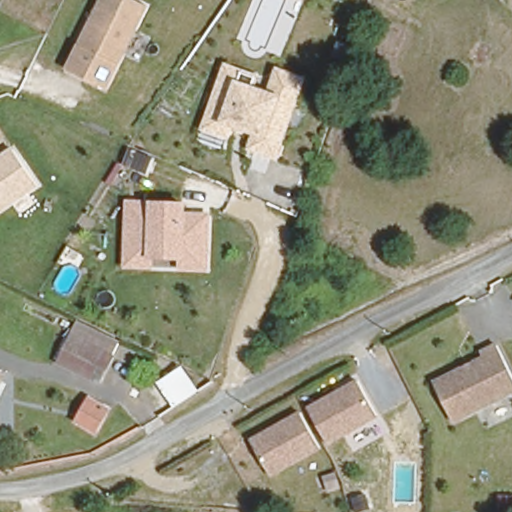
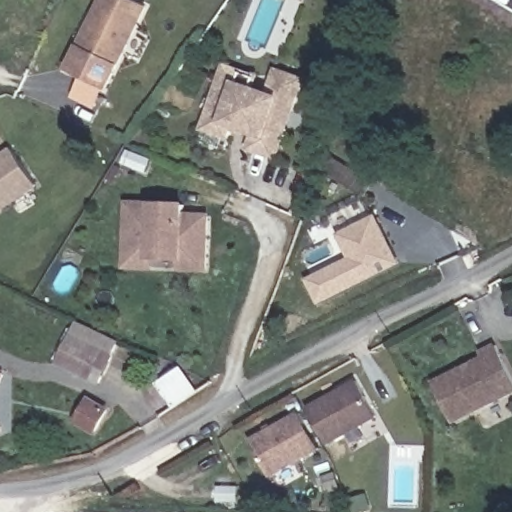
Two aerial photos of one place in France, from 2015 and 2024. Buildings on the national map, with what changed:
unchanged [(109,90),(64,69),(97,0),(134,0),(147,6),(109,90)]
unchanged [(260,74),(255,86),(265,89),(273,65),(304,76),(275,160),(243,150),(247,136),(230,130),(225,142),(196,130),(221,62),(260,74)]
unchanged [(11,146),(38,187),(0,212),(0,153),(11,146)]
unchanged [(122,199),(152,199),(151,200),(188,201),(188,213),(211,215),(210,274),(176,272),(175,259),(150,258),(152,268),(119,267),(122,199)]
new [(342,237),(378,220),(390,242),(393,249),(401,266),(321,304),(312,286),(315,280),(354,261),(342,237)]
unchanged [(72,308),(118,331),(92,384),(46,361),(72,308)]
unchanged [(512,399),(509,400),(499,405),(488,410),(478,415),(468,420),(458,425),(452,428),(450,424),(445,414),(440,403),(435,393),(433,390),(462,376),(467,378),(472,376),(473,371),(485,365),(482,360),(498,352),(512,381),(512,399)]
unchanged [(200,398),(172,416),(153,388),(180,368),(200,398)]
unchanged [(4,378),(0,385),(0,377),(4,378)]
unchanged [(327,445),(306,405),(355,377),(375,418),(327,445)]
unchanged [(88,399),(104,408),(89,439),(72,431),(88,399)]
unchanged [(300,409),(322,448),(268,477),(247,438),(300,409)]
unchanged [(1,433),(0,434),(0,429),(1,433)]

